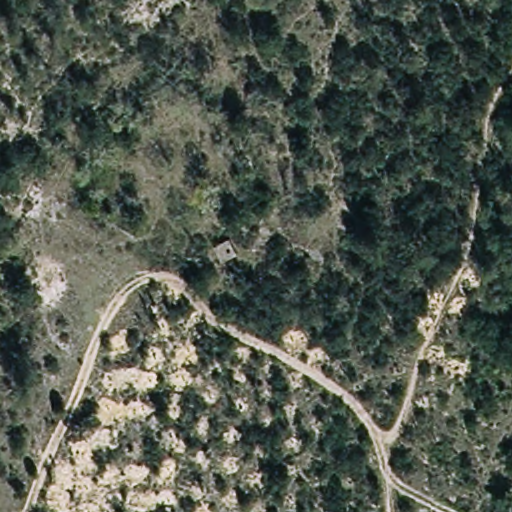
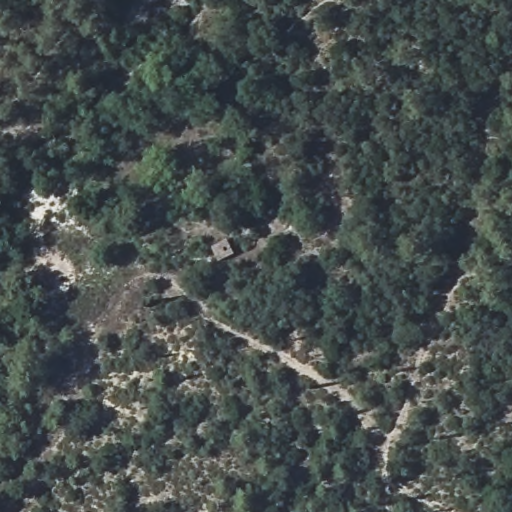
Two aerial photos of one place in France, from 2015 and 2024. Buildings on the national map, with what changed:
unchanged [(220,264),(211,248),(225,240),(228,244),(237,255),(223,262),(220,264)]

